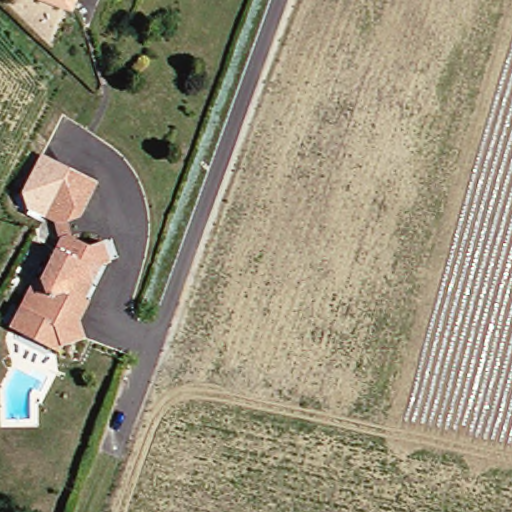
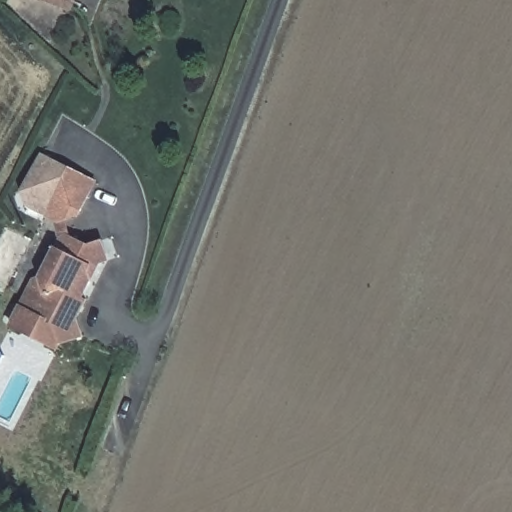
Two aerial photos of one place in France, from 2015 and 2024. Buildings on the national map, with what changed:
unchanged [(68,0),(80,0),(79,4),(68,0)]
unchanged [(40,213),(61,172),(100,194),(90,212),(83,212),(79,222),(78,232),(79,240),(62,227),(40,213)]
unchanged [(79,240),(87,245),(96,248),(106,248),(113,246),(118,268),(106,272),(81,315),(86,337),(65,341),(61,322),(33,307),(66,247),(62,227),(79,240)]

